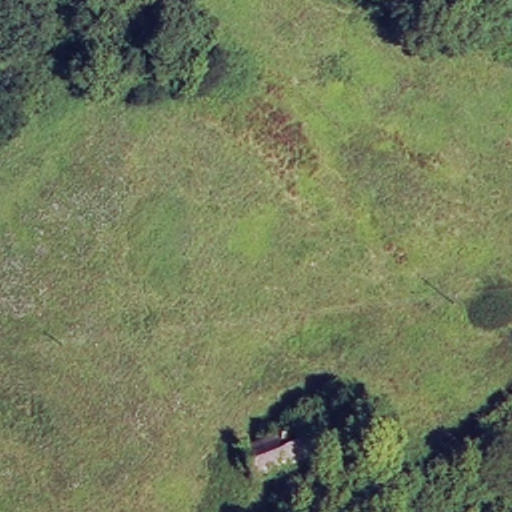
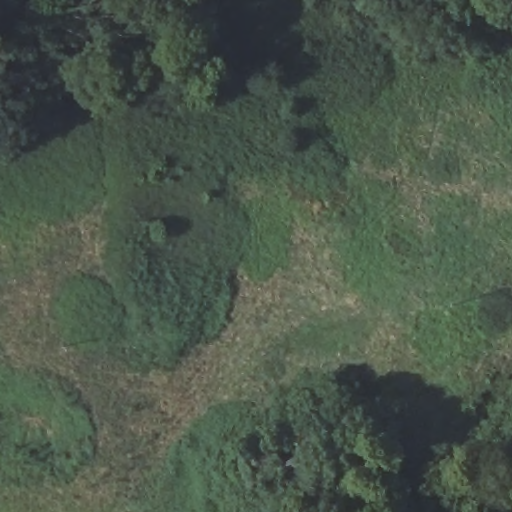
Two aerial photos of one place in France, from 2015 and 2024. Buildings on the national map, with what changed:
unchanged [(320,458),(244,481),(235,449),(309,427),(320,458)]

